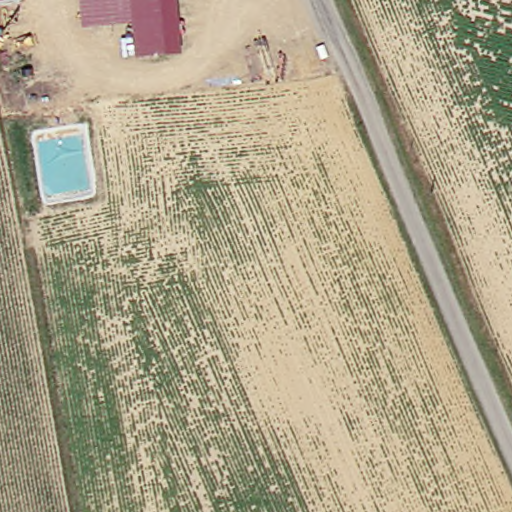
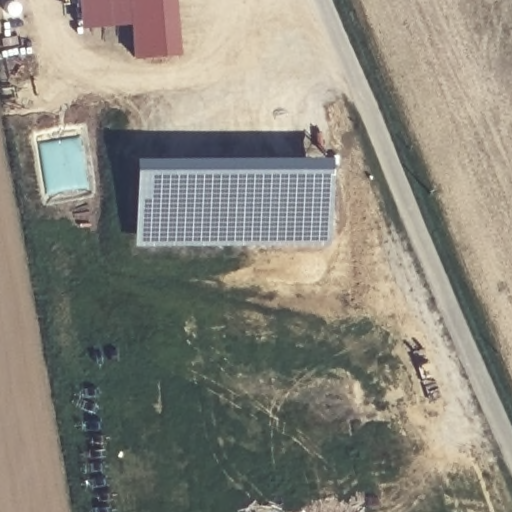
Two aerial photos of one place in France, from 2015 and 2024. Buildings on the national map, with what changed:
new [(131,23),(80,27),(78,0),(176,0),(179,54),(133,57),(131,23)]
new [(138,161),(333,161),(334,226),(138,226),(138,161)]

